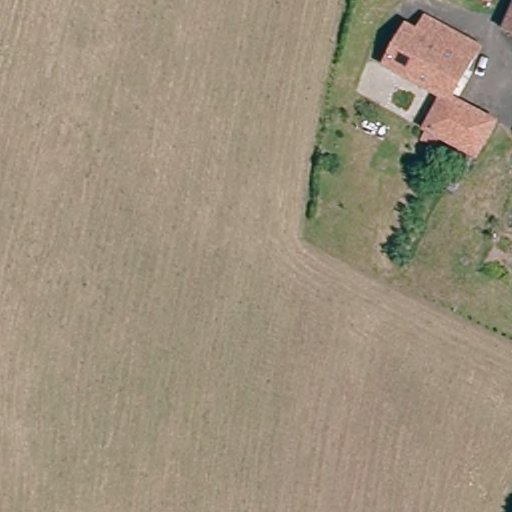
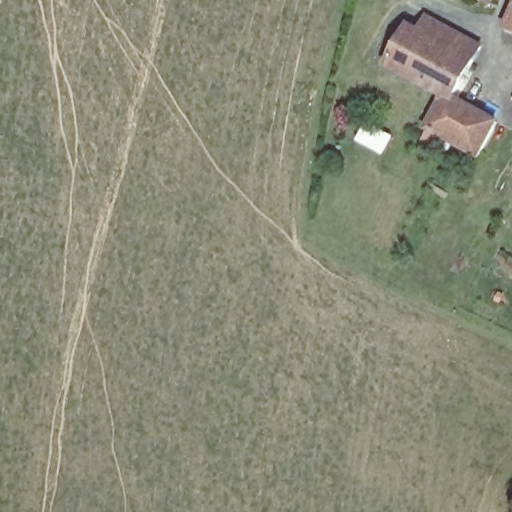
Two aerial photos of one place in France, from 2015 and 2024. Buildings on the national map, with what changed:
unchanged [(491,4),(483,0),(493,0),(491,4)]
unchanged [(512,4),(512,36),(501,31),(512,4)]
unchanged [(463,32),(478,40),(452,97),(444,93),(386,61),(405,23),(416,28),(424,11),(463,32)]
unchanged [(421,139),(425,132),(444,93),(452,97),(499,122),(487,144),(478,159),(472,156),(469,162),(457,155),(460,148),(447,140),(444,144),(441,149),(421,139)]

